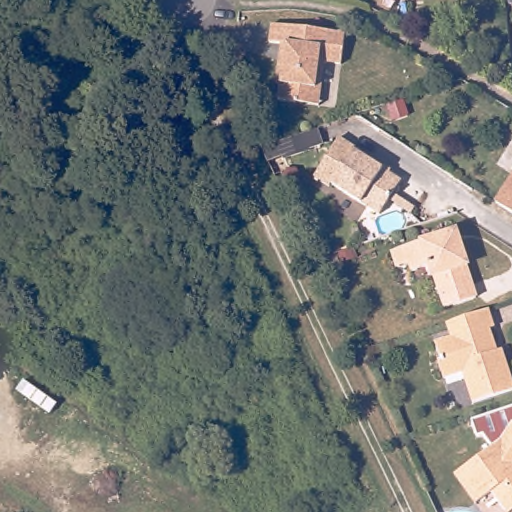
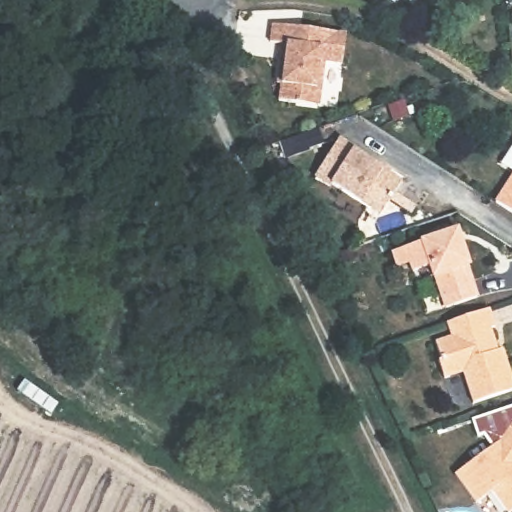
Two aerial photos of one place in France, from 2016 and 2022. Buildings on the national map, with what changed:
unchanged [(297,102),(281,100),(282,82),(277,82),(280,57),(285,57),(286,42),(272,41),(274,23),(347,32),(343,63),(326,61),(322,87),(320,105),(297,102)]
unchanged [(291,141),(322,130),(327,144),(296,155),(291,141)]
unchanged [(379,158),(377,161),(405,180),(407,176),(428,190),(413,211),(392,198),(383,212),(335,181),(332,186),(317,176),(343,135),(379,158)]
unchanged [(498,203),(512,181),(512,212),(498,203)]
unchanged [(448,308),(438,278),(434,278),(431,268),(416,273),(412,266),(399,270),(394,253),(460,231),(472,266),(468,267),(478,298),(448,308)]
unchanged [(498,327),(490,330),(497,352),(506,350),(512,370),(512,389),(476,400),(466,371),(451,376),(440,345),(456,340),(452,327),(495,312),(498,327)]
unchanged [(510,510),(493,490),(477,500),(456,471),(500,441),(512,422),(512,509),(510,510)]

